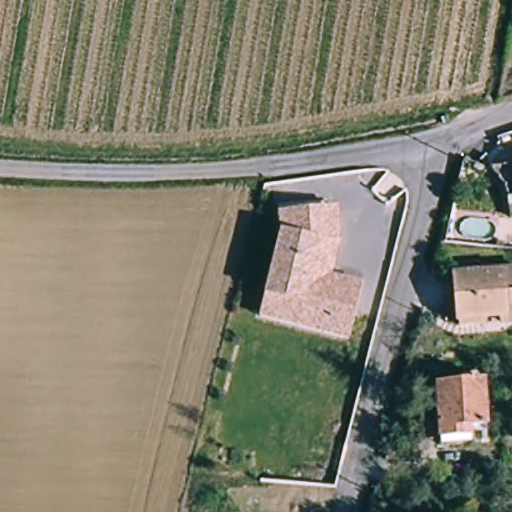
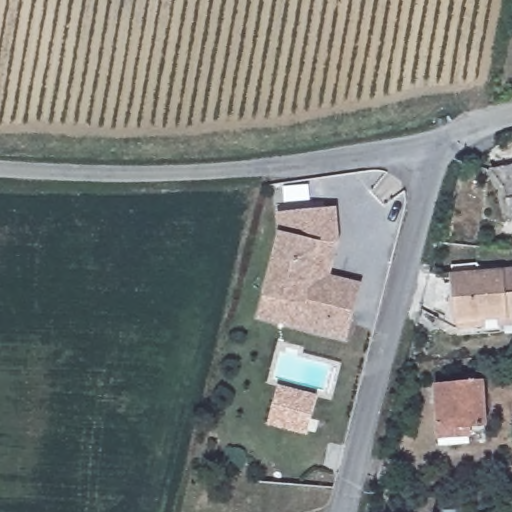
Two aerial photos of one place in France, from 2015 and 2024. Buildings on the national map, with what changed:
unchanged [(503,182),(490,170),(512,166),(512,214),(508,215),(503,182)]
unchanged [(314,207),(314,212),(334,210),(336,232),(336,233),(337,233),(337,234),(337,235),(337,236),(337,237),(337,238),(337,240),(337,241),(337,242),(337,243),(337,244),(336,245),(336,246),(336,247),(335,248),(335,249),(334,250),(334,251),(333,251),(333,252),(332,253),(331,254),(330,255),(329,256),(328,257),(327,257),(327,258),(326,258),(325,258),(325,259),(324,259),(325,277),(360,286),(349,329),(326,324),(324,331),(297,324),(301,307),(270,299),(286,235),(283,211),(314,207)]
unchanged [(500,280),(512,280),(512,319),(504,320),(504,330),(480,332),(477,332),(463,326),(472,283),(477,282),(500,280)]
new [(278,383),(318,393),(313,411),(307,434),(268,424),(274,401),(278,383)]
unchanged [(436,388),(483,385),(486,429),(471,429),(471,447),(439,449),(438,441),(436,388)]

